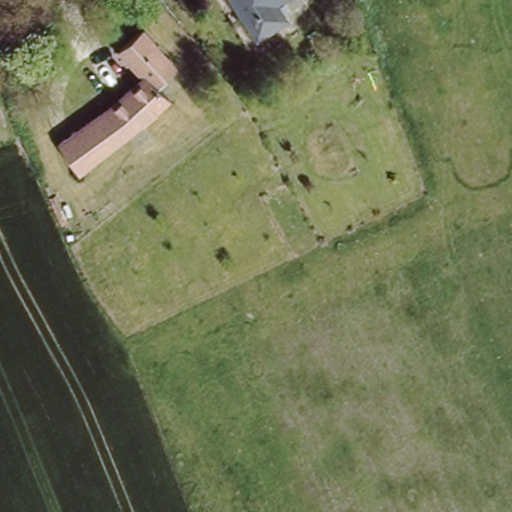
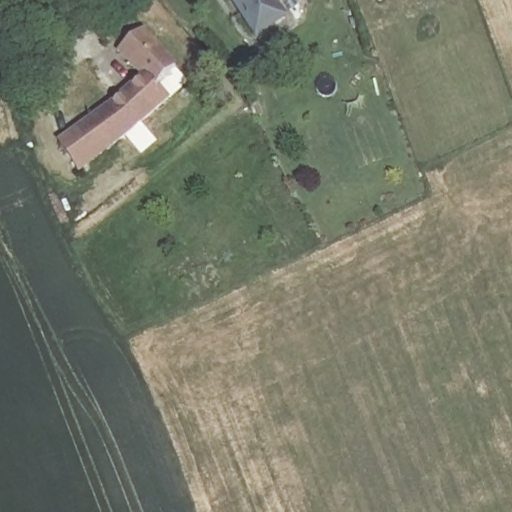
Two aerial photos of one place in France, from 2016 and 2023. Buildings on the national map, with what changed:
unchanged [(270,6),(279,20),(250,40),(233,0),(278,0),(270,6)]
unchanged [(155,79),(168,96),(124,135),(73,168),(62,152),(54,141),(98,112),(140,75),(117,47),(130,35),(139,27),(172,64),(155,79)]

